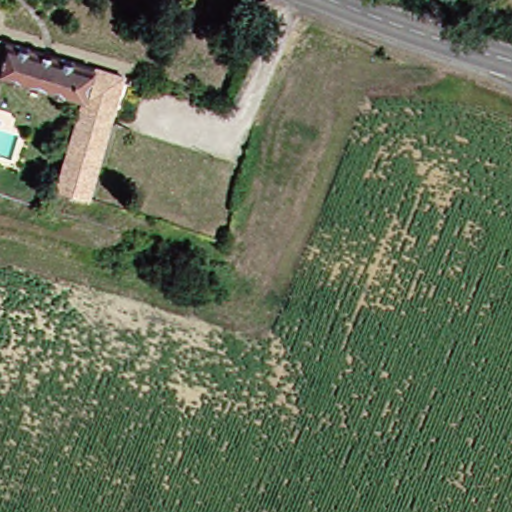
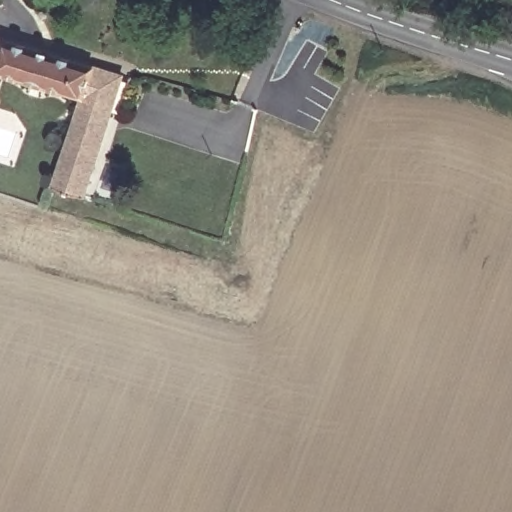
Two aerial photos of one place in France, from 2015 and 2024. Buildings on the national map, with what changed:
unchanged [(77,96),(0,71),(0,40),(105,71),(116,75),(125,79),(114,119),(104,116),(80,190),(52,181),(77,96)]

